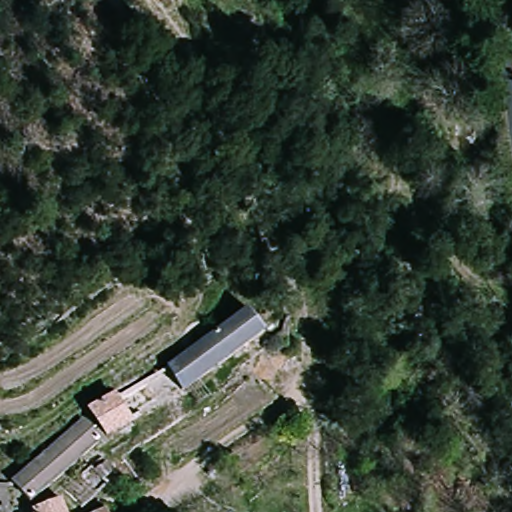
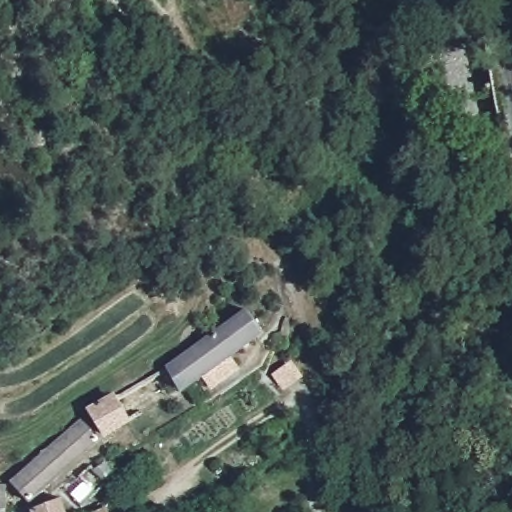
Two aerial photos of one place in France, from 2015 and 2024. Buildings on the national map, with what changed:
unchanged [(118,396),(123,401),(181,366),(263,310),(278,332),(184,394),(147,415),(115,432),(96,408),(118,396)]
unchanged [(36,499),(14,477),(84,415),(104,436),(36,499)]
unchanged [(14,480),(16,512),(0,512),(0,480),(14,480)]
unchanged [(65,495),(70,512),(44,512),(44,502),(65,495)]
unchanged [(92,512),(109,504),(112,512),(92,512)]

